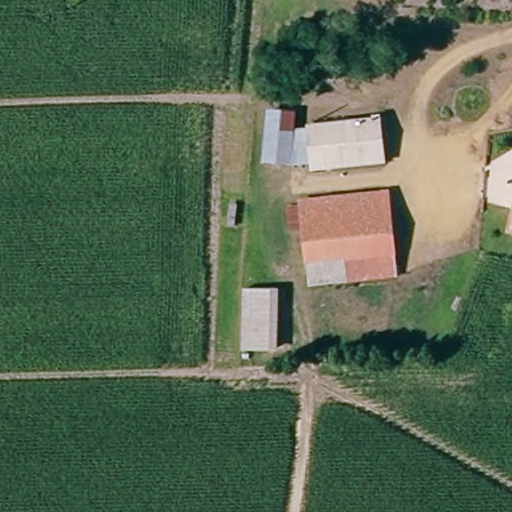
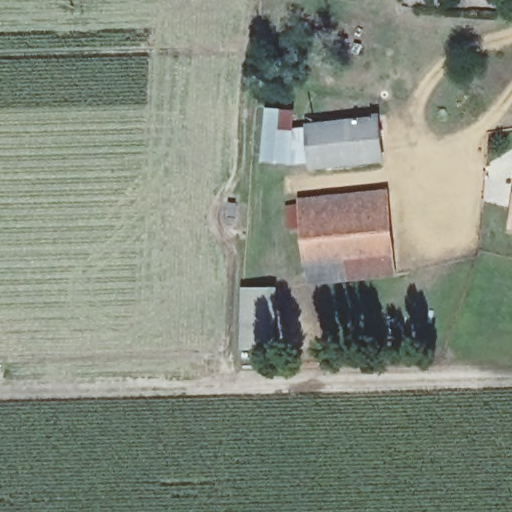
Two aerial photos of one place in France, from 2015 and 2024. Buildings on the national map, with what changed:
unchanged [(309,174),(309,166),(286,165),(258,161),(265,108),(288,109),(287,129),(383,116),(382,166),(309,174)]
unchanged [(397,257),(400,278),(317,292),(313,269),(303,212),(386,199),(397,257)]
unchanged [(276,346),(248,348),(245,288),(273,286),(276,346)]

